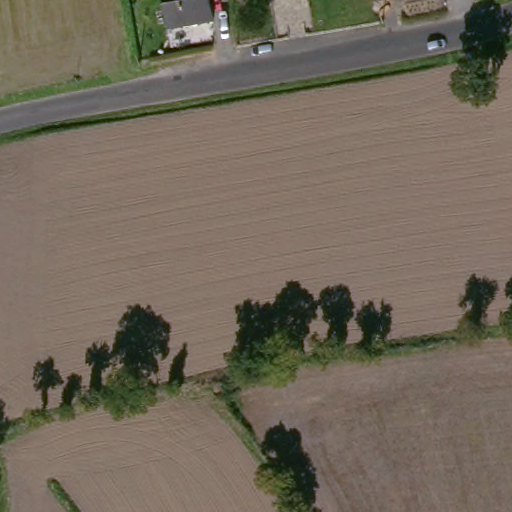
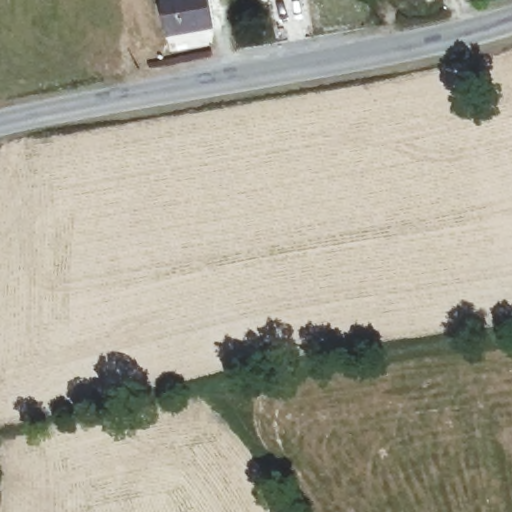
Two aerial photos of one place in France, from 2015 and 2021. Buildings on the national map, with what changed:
unchanged [(164,0),(207,0),(209,27),(169,34),(164,0)]

